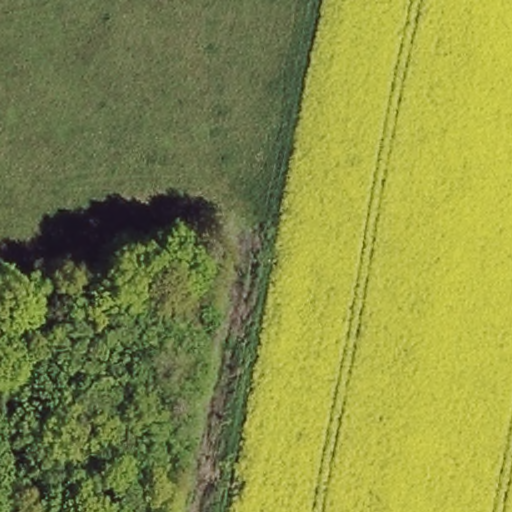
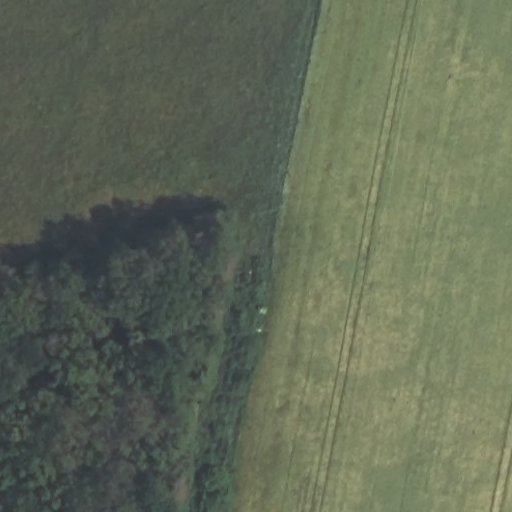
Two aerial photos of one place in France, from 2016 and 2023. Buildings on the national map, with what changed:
[]

